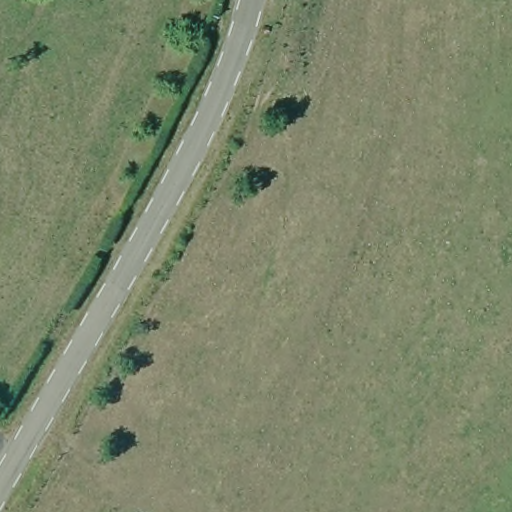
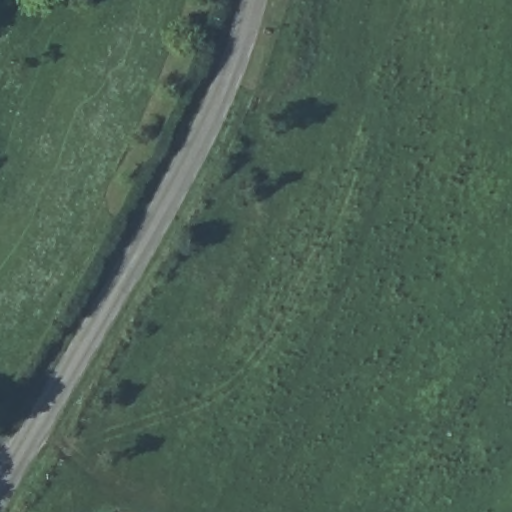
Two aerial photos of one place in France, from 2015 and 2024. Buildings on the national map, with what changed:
[]

